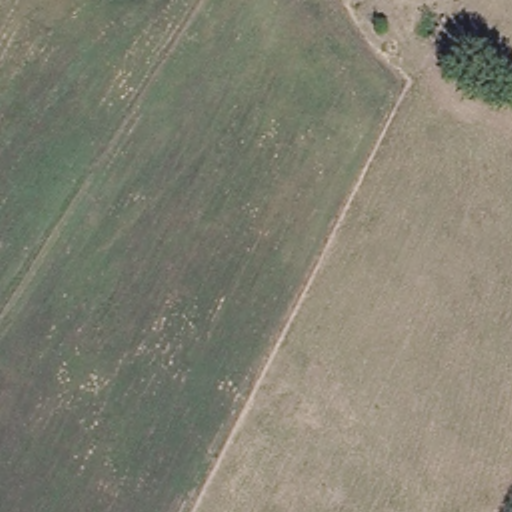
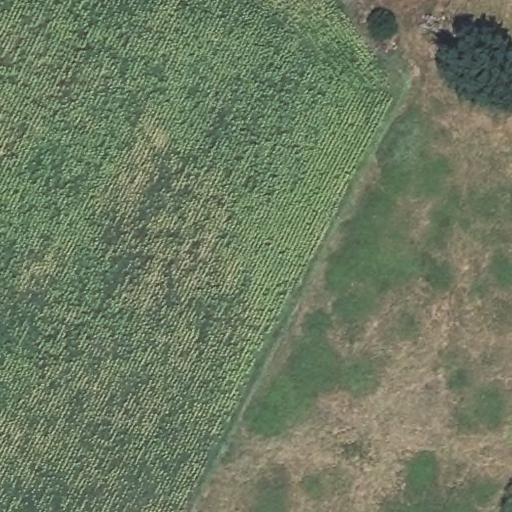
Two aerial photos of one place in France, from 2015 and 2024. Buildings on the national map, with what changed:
[]

